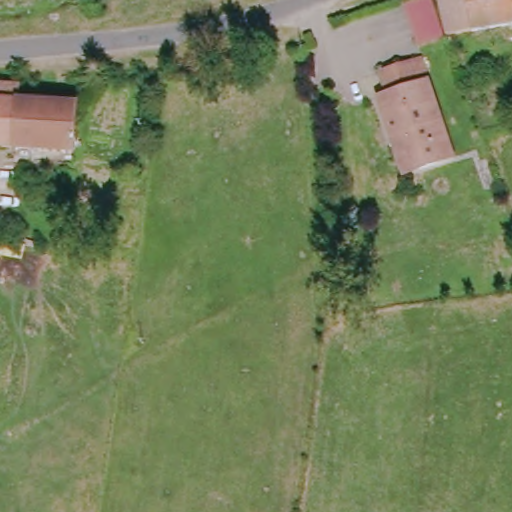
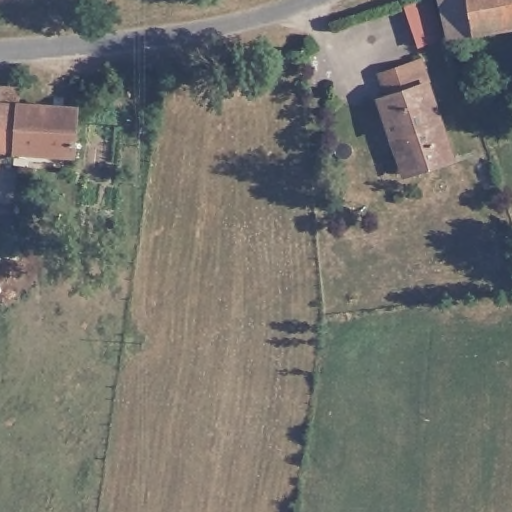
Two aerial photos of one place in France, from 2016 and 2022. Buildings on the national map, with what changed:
unchanged [(392,2),(397,0),(424,0),(434,27),(406,36),(392,2)]
unchanged [(485,66),(451,70),(434,27),(433,0),(512,0),(512,19),(478,25),(485,66)]
unchanged [(386,136),(373,100),(380,98),(373,75),(412,61),(444,158),(417,168),(399,174),(386,136)]
unchanged [(14,104),(72,110),(67,157),(0,150),(0,80),(15,81),(14,97),(14,104)]

